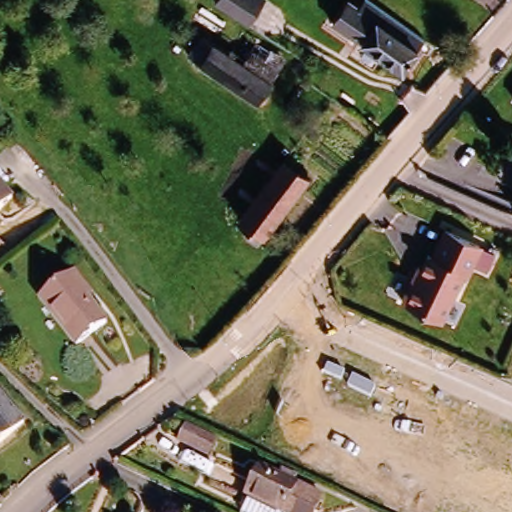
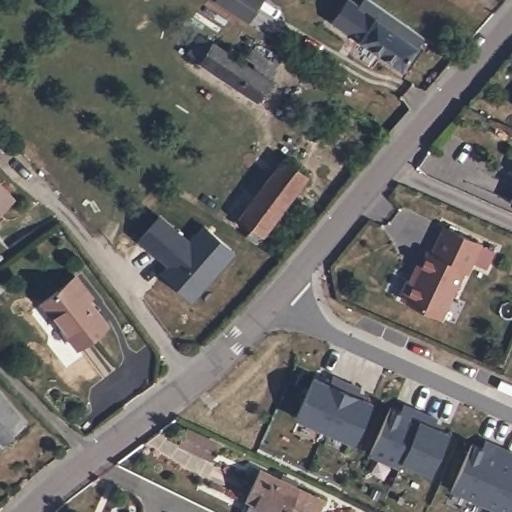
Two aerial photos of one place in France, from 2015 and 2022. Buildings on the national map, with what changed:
unchanged [(214,0),(256,0),(243,20),(214,0)]
unchanged [(339,25),(333,20),(346,0),(353,0),(356,1),(419,46),(403,69),(339,25)]
unchanged [(234,26),(280,56),(265,79),(219,49),(234,26)]
unchanged [(265,79),(251,98),(183,53),(196,33),(219,49),(265,79)]
unchanged [(284,154),(308,172),(258,238),(247,229),(253,221),(241,211),(284,154)]
unchanged [(13,200),(0,212),(0,185),(13,200)]
new [(165,212),(194,240),(209,224),(238,252),(193,298),(164,270),(174,260),(166,251),(163,253),(143,234),(165,212)]
unchanged [(426,257),(429,259),(435,245),(441,231),(478,246),(471,262),(466,275),(462,273),(443,321),(403,305),(411,283),(417,270),(420,271),(426,257)]
unchanged [(78,352),(43,307),(71,284),(78,279),(94,300),(88,305),(107,329),(78,352)]
new [(312,378),(328,385),(331,377),(359,389),(355,397),(371,404),(353,444),(294,418),(312,378)]
unchanged [(19,424),(0,440),(0,400),(19,424)]
new [(389,408),(405,414),(409,407),(436,419),(433,427),(448,433),(431,474),(402,462),(399,468),(369,454),(389,408)]
unchanged [(218,447),(211,461),(181,445),(188,431),(218,447)]
new [(487,451),(491,443),(512,452),(512,511),(512,512),(501,512),(451,490),(472,444),(487,451)]
unchanged [(254,501),(246,497),(261,468),(279,477),(284,468),(304,479),(301,488),(326,501),(319,512),(249,512),(254,501)]

